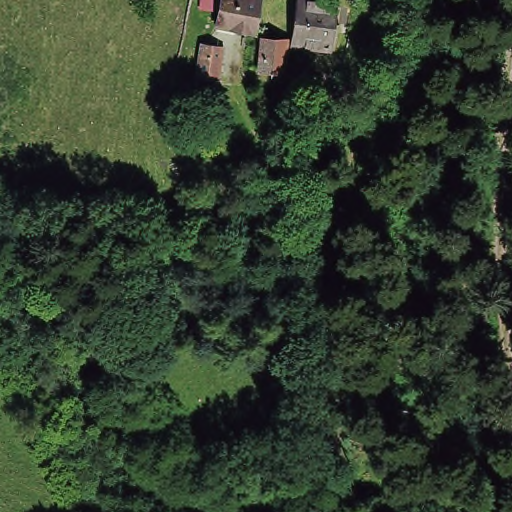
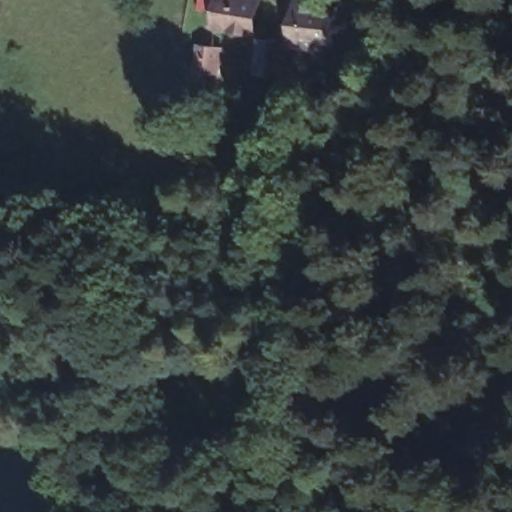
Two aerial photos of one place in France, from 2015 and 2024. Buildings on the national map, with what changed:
unchanged [(270,10),(261,46),(223,39),(229,4),(270,10)]
unchanged [(303,14),(342,18),(337,62),(298,57),(303,14)]
unchanged [(268,52),(292,54),(290,86),(265,84),(268,52)]
unchanged [(200,85),(205,53),(225,56),(220,87),(200,85)]

